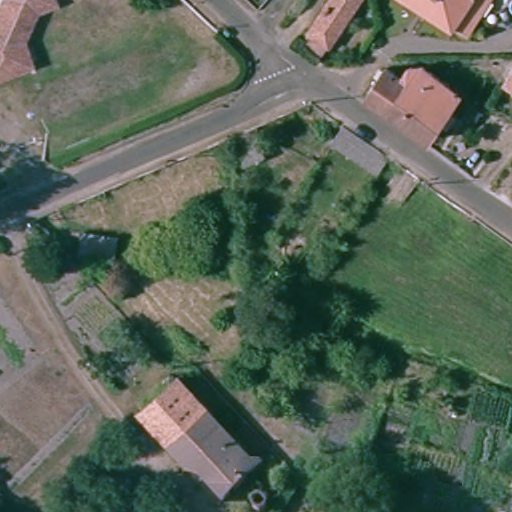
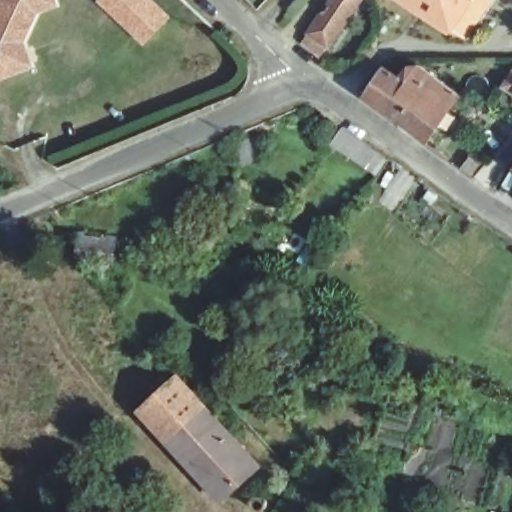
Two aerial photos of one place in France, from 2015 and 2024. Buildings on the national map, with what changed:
unchanged [(24,21),(46,60),(0,85),(0,12),(2,10),(0,8),(0,0),(52,0),(52,1),(24,21)]
new [(171,16),(145,45),(98,0),(153,0),(171,16)]
unchanged [(301,45),(308,33),(330,0),(359,0),(328,46),(321,57),(301,45)]
unchanged [(476,17),(465,35),(408,0),(486,0),(476,17)]
unchanged [(498,83),(512,68),(512,95),(498,83)]
unchanged [(381,109),(361,95),(378,70),(394,81),(401,70),(412,71),(385,111),(381,109)]
unchanged [(412,71),(417,72),(454,95),(444,111),(453,119),(446,129),(437,124),(425,140),(385,111),(412,71)]
unchanged [(256,134),(277,126),(286,147),(263,156),(256,134)]
unchanged [(330,145),(340,130),(378,156),(367,170),(330,145)]
unchanged [(74,245),(77,235),(114,246),(111,255),(109,265),(107,271),(70,260),(72,254),(74,245)]
unchanged [(138,406),(176,375),(256,462),(219,494),(143,411),(138,406)]
unchanged [(258,490),(265,491),(268,495),(268,500),(267,504),(265,507),(261,508),(256,508),(253,506),(251,503),(251,500),(251,496),(252,492),(258,490)]

